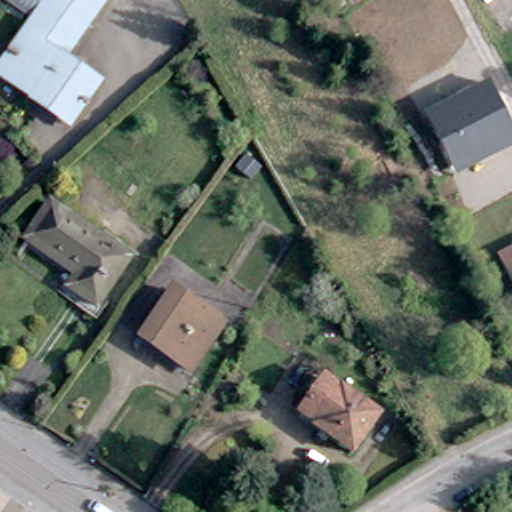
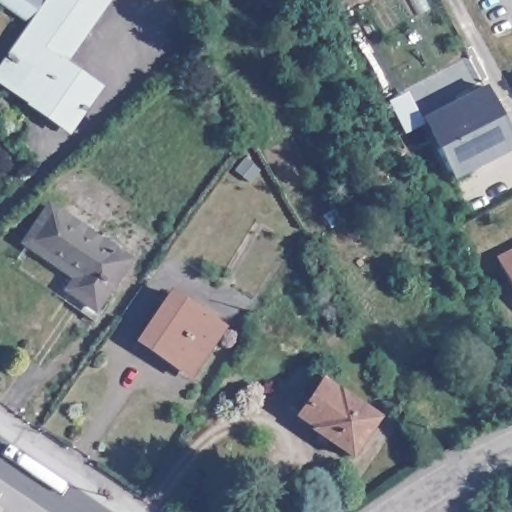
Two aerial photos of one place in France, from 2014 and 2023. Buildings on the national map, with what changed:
unchanged [(0,6),(0,0),(38,0),(42,2),(26,23),(0,6)]
unchanged [(60,122),(59,125),(0,84),(0,74),(21,43),(15,39),(26,23),(42,2),(44,0),(98,0),(55,63),(86,85),(84,88),(96,97),(72,131),(60,122)]
unchanged [(512,148),(454,179),(421,116),(483,82),(512,136),(512,148)]
unchanged [(52,212),(129,263),(98,310),(71,292),(78,282),(29,250),(52,212)]
unchanged [(512,247),(512,285),(498,255),(512,247)]
unchanged [(180,372),(133,341),(161,297),(209,329),(180,372)]
unchanged [(346,457),(309,431),(316,421),(301,410),(321,383),(374,420),(346,457)]

